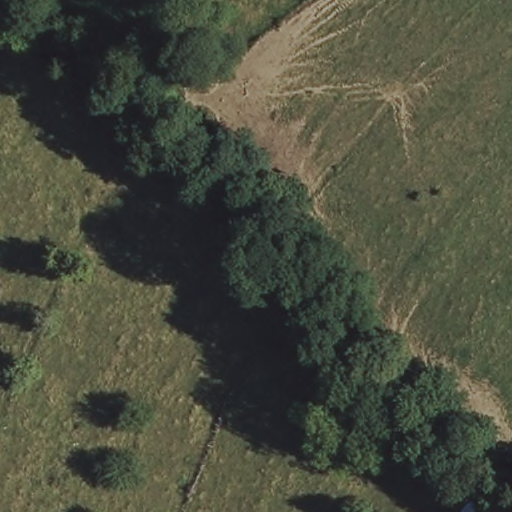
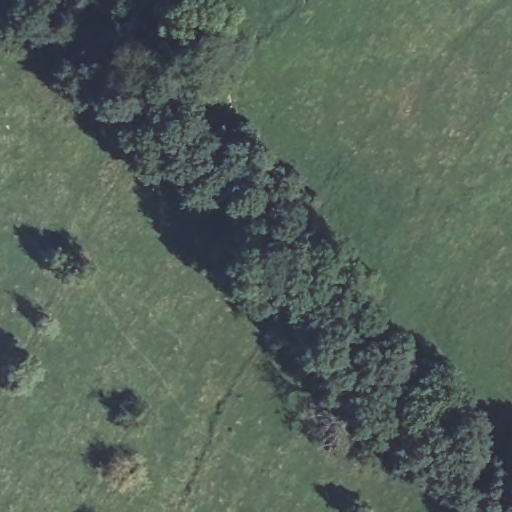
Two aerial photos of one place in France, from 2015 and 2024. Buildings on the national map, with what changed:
unchanged [(448,507),(467,480),(493,499),(483,512),(455,512),(448,507)]
unchanged [(493,499),(510,512),(483,512),(493,499)]

